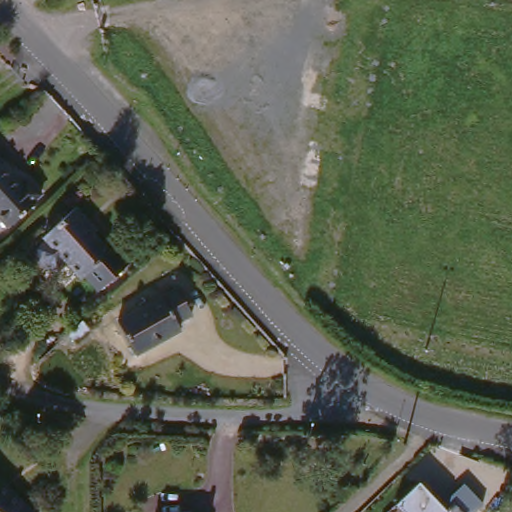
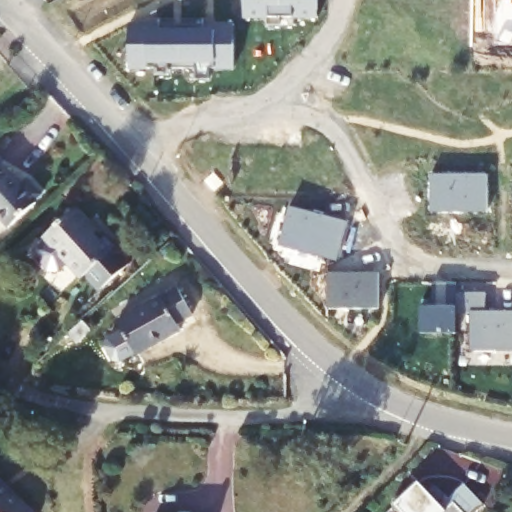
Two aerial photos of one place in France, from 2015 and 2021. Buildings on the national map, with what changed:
new [(247,16),(247,0),(318,0),(318,17),(247,16)]
demolished [(348,0),(362,0),(361,2),(348,0)]
new [(233,21),(233,69),(215,69),(215,65),(148,62),(148,68),(130,66),(129,20),(233,21)]
new [(430,175),(486,174),(487,211),(430,211),(430,175)]
unchanged [(17,195),(24,189),(38,204),(31,210),(33,213),(6,237),(0,230),(0,177),(17,195)]
unchanged [(27,252),(37,242),(33,238),(64,210),(78,222),(74,226),(99,252),(105,247),(122,264),(92,292),(75,275),(72,278),(58,263),(48,273),(37,271),(29,262),(27,252)]
new [(378,272),(377,306),(328,306),(329,270),(378,272)]
new [(470,313),(457,311),(457,333),(421,333),(420,306),(430,306),(432,281),(456,281),(456,292),(485,292),(486,310),(512,310),(512,352),(470,351),(470,313)]
unchanged [(182,293),(197,320),(182,328),(187,336),(139,361),(120,326),(182,293)]
unchanged [(84,333),(69,346),(61,338),(76,325),(84,333)]
unchanged [(444,507),(453,500),(461,512),(402,512),(394,503),(420,481),(444,507)]
unchanged [(0,485),(27,512),(0,512),(0,485)]

